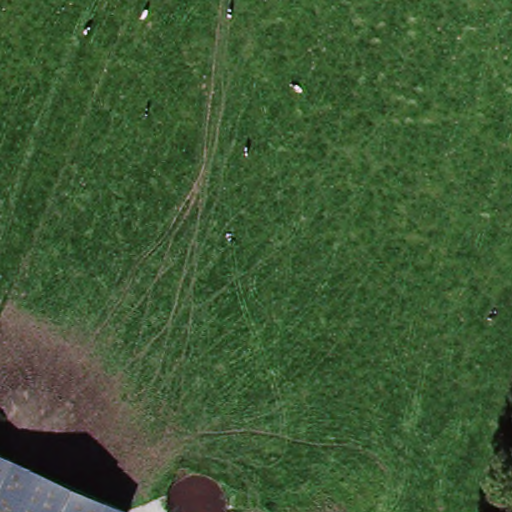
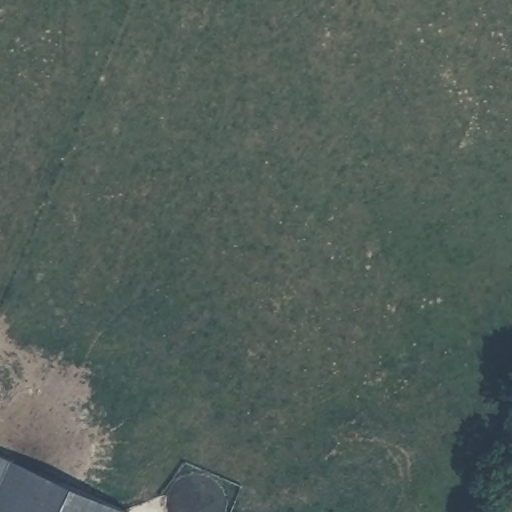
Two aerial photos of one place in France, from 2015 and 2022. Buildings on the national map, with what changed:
unchanged [(108,512),(0,512),(0,457),(2,457),(25,469),(108,512)]

